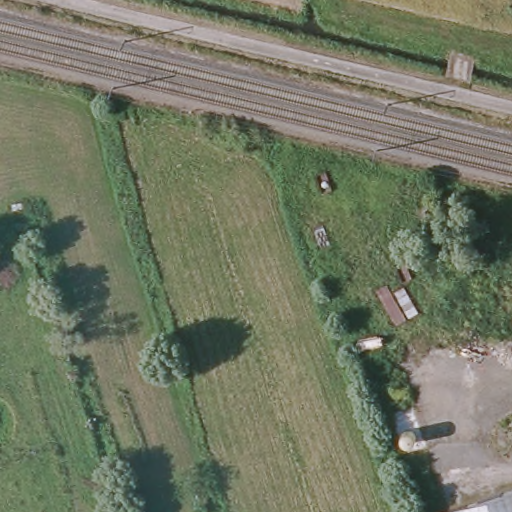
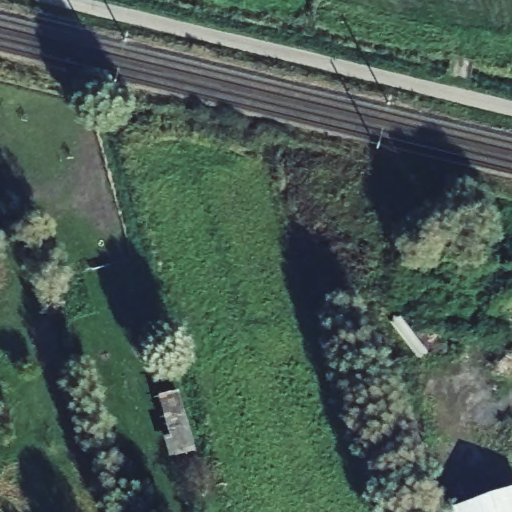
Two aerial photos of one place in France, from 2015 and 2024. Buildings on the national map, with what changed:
new [(192,453),(171,457),(158,397),(179,392),(192,453)]
unchanged [(512,493),(512,512),(451,512),(512,493)]

